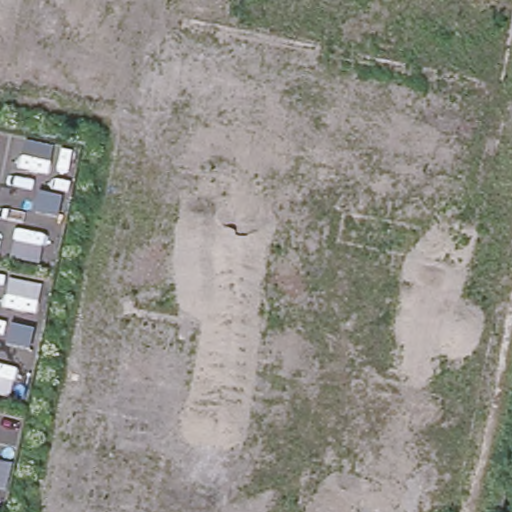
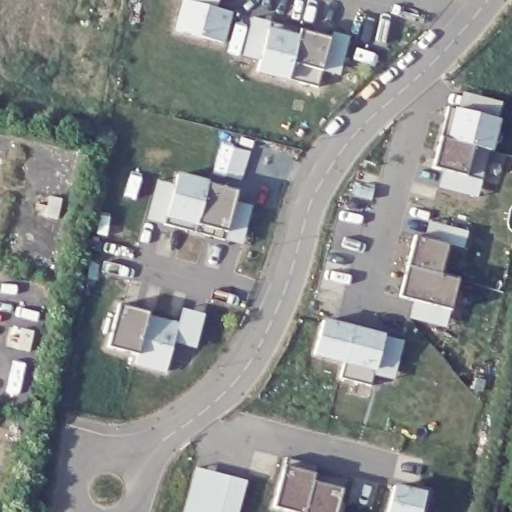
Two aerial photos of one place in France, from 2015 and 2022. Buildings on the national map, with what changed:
new [(181,0),(189,0),(232,12),(224,43),(173,30),(181,0)]
new [(269,28),(270,22),(302,30),(329,37),(322,70),(317,86),(288,78),(287,82),(256,72),(269,28)]
new [(443,170),(433,167),(440,139),(447,106),(458,108),(461,92),(501,102),(498,120),(491,150),(482,179),(477,198),(438,189),(443,170)]
new [(146,220),(157,180),(174,185),(177,172),(209,181),(208,184),(236,191),(235,199),(252,204),(241,245),(163,224),(146,220)]
new [(415,300),(400,296),(407,267),(415,237),(423,239),(427,222),(467,231),(463,250),(447,246),(440,273),(457,278),(450,309),(445,327),(409,318),(415,300)]
new [(135,366),(138,353),(108,344),(118,305),(148,313),(178,323),(182,308),(202,313),(195,347),(174,342),(166,372),(135,366)]
new [(344,363),(313,355),(323,319),(384,335),(403,341),(395,380),(374,374),(371,385),(340,377),(344,363)]
new [(285,466),(287,458),(317,466),(315,473),(344,480),(343,490),(337,512),(298,512),(275,506),(285,466)]
new [(195,467),(247,481),(239,512),(183,512),(195,467)]
new [(395,485),(426,492),(421,512),(388,512),(395,485)]
new [(53,495),(124,512),(49,512),(53,495)]

